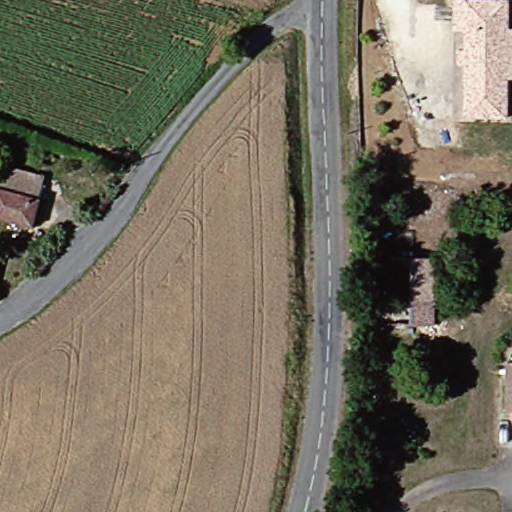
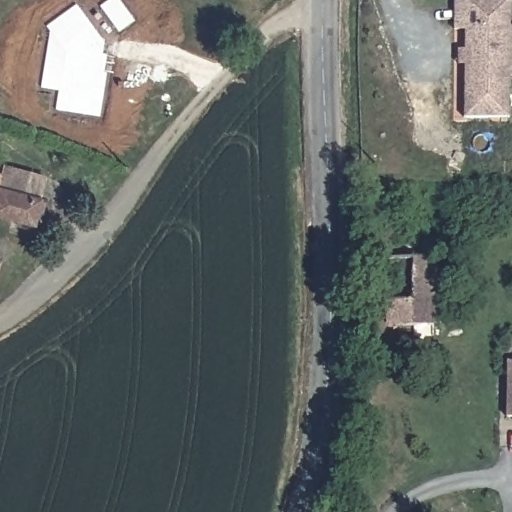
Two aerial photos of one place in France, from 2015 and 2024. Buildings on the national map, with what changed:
new [(58,91),(41,88),(49,31),(45,25),(76,3),(104,41),(101,53),(106,54),(104,71),(106,71),(99,117),(55,109),(58,91)]
unchanged [(460,35),(449,34),(449,5),(488,3),(502,3),(504,32),(512,31),(512,79),(505,79),(507,121),(462,122),(462,70),(454,70),(455,57),(461,56),(460,35)]
unchanged [(2,172),(1,184),(41,197),(32,226),(0,216),(0,172),(2,172)]
unchanged [(2,264),(0,273),(0,264),(2,264)]
unchanged [(436,325),(419,325),(417,298),(434,297),(436,325)]
unchanged [(512,400),(512,418),(510,417),(512,400)]

